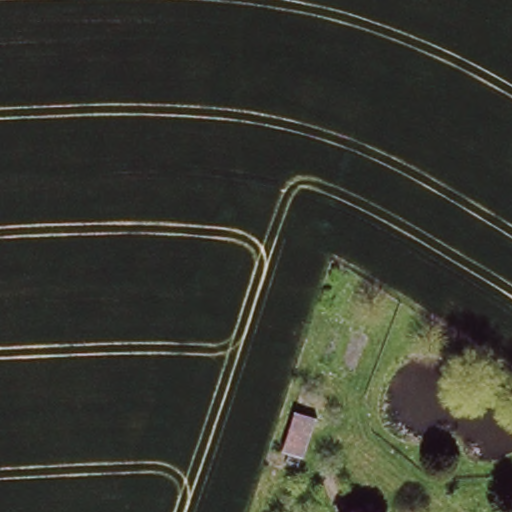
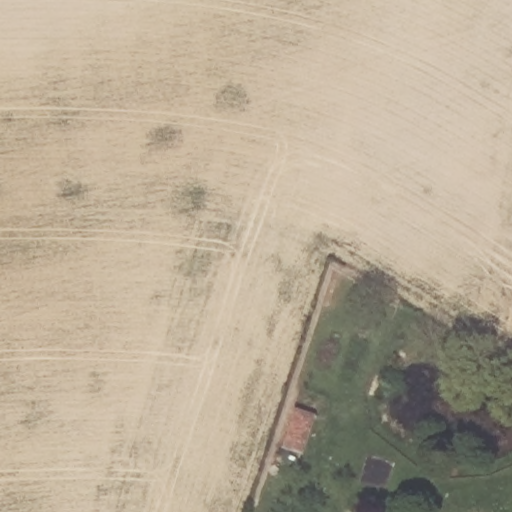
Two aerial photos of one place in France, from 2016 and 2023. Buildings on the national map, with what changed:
unchanged [(295,408),(313,413),(302,451),(284,446),(295,408)]

